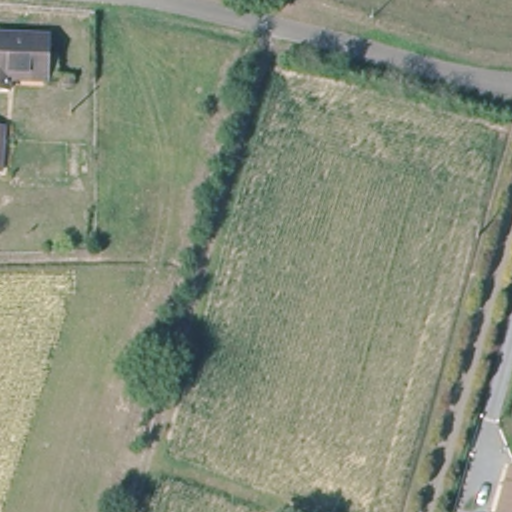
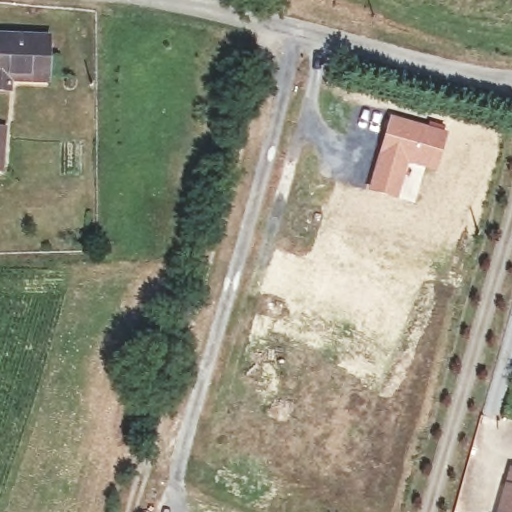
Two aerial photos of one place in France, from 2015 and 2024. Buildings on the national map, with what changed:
unchanged [(53,72),(15,72),(15,78),(0,79),(0,26),(53,26),(53,72)]
new [(389,115),(447,131),(435,170),(408,164),(402,184),(417,188),(413,201),(366,189),(389,115)]
unchanged [(1,166),(0,166),(0,126),(5,126),(1,166)]
unchanged [(512,469),(512,512),(492,512),(507,467),(512,469)]

